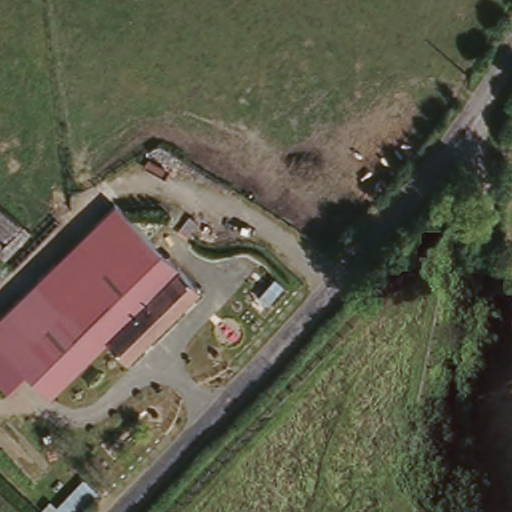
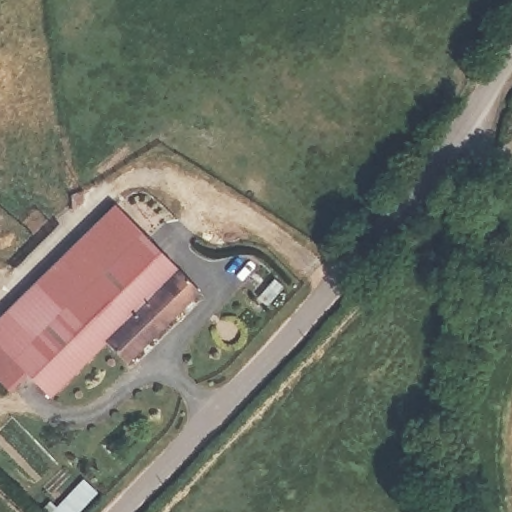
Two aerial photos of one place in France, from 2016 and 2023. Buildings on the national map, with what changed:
unchanged [(206,291),(127,370),(103,346),(46,402),(17,374),(0,357),(0,317),(113,207),(206,291)]
unchanged [(0,391),(0,357),(17,374),(0,391)]
unchanged [(92,494),(75,512),(49,512),(78,482),(92,494)]

